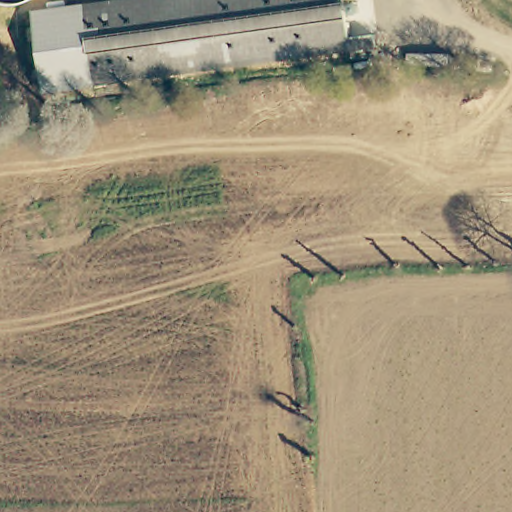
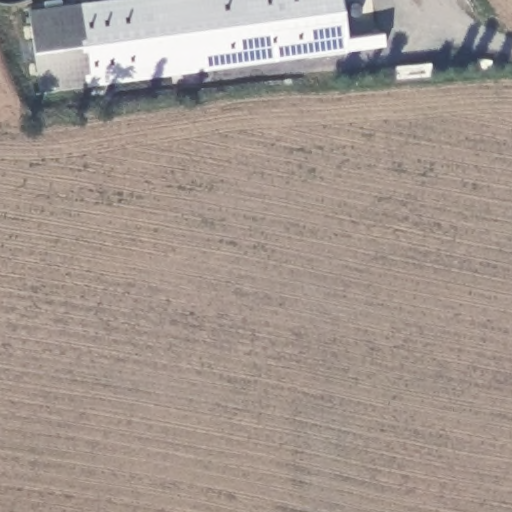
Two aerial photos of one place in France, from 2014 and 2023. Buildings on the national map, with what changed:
unchanged [(92,91),(41,97),(30,11),(107,0),(189,0),(81,16),(92,91)]
unchanged [(341,0),(347,34),(373,31),(375,51),(351,55),(351,53),(92,91),(81,16),(189,0),(341,0)]

